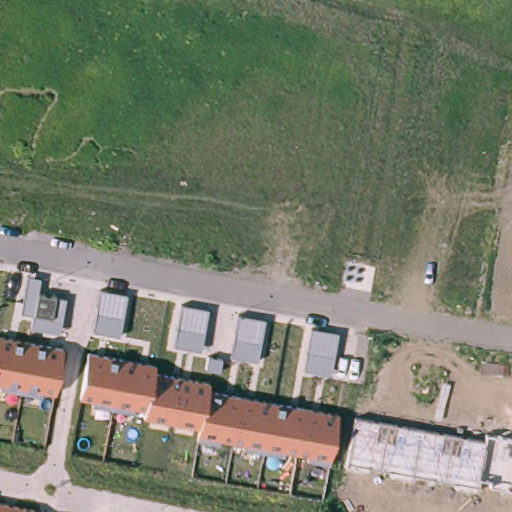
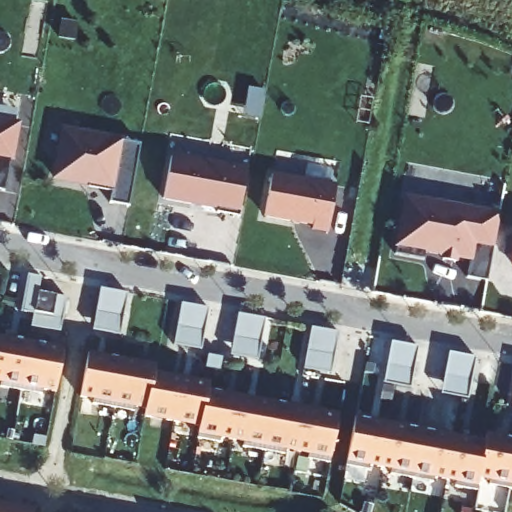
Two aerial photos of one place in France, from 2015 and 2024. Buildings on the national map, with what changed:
new [(62,21),(76,24),(74,38),(59,35),(62,21)]
new [(5,189),(0,189),(0,120),(17,123),(5,189)]
new [(109,202),(112,188),(96,185),(97,183),(90,182),(90,184),(54,178),(63,129),(140,143),(129,206),(109,202)]
new [(214,212),(214,206),(188,201),(187,203),(160,197),(167,155),(197,161),(197,159),(234,166),(233,167),(244,169),(235,215),(214,212)]
new [(303,165),(335,171),(332,189),(300,183),(303,165)]
new [(332,189),(324,235),(308,232),(309,228),(260,218),(267,177),(332,189)]
new [(486,283),(466,279),(470,261),(424,253),(422,261),(394,256),(405,199),(498,217),(486,283)]
unchanged [(41,277),(39,292),(65,296),(59,332),(30,327),(32,314),(20,312),(27,275),(41,277)]
unchanged [(127,293),(120,334),(92,329),(100,289),(127,293)]
unchanged [(208,307),(200,349),(172,344),(181,302),(208,307)]
unchanged [(265,318),(257,359),(229,354),(237,313),(265,318)]
unchanged [(339,331),(330,374),(304,370),(312,327),(339,331)]
unchanged [(55,391),(0,380),(0,334),(63,346),(55,391)]
new [(382,381),(390,339),(417,346),(410,386),(382,381)]
unchanged [(157,361),(157,369),(210,378),(210,387),(337,411),(329,458),(198,434),(200,424),(144,413),(145,405),(80,395),(87,349),(157,361)]
new [(440,391),(447,351),(474,357),(466,397),(440,391)]
new [(511,405),(512,400),(512,405),(511,405)]
unchanged [(484,438),(485,432),(512,437),(512,482),(479,475),(477,484),(346,460),(353,415),(484,438)]
unchanged [(33,512),(0,512),(0,500),(35,506),(33,512)]

